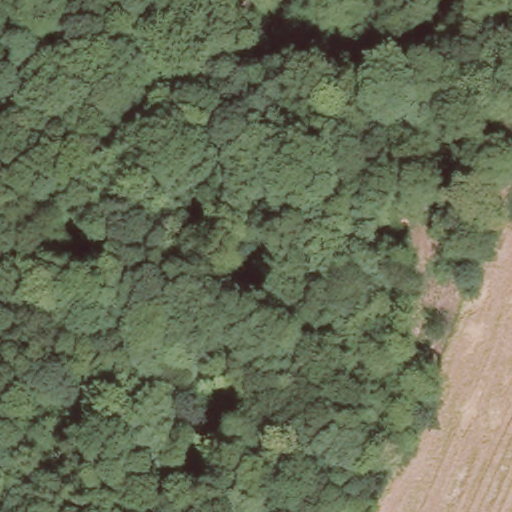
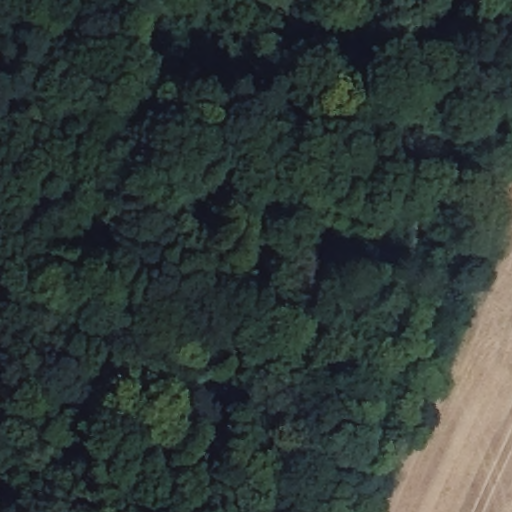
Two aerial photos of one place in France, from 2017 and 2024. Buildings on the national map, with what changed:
[]

